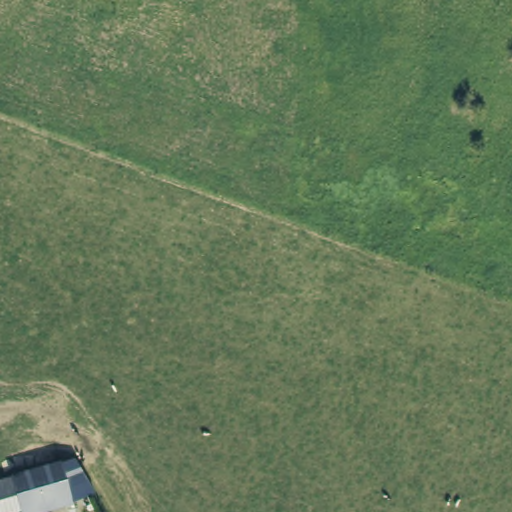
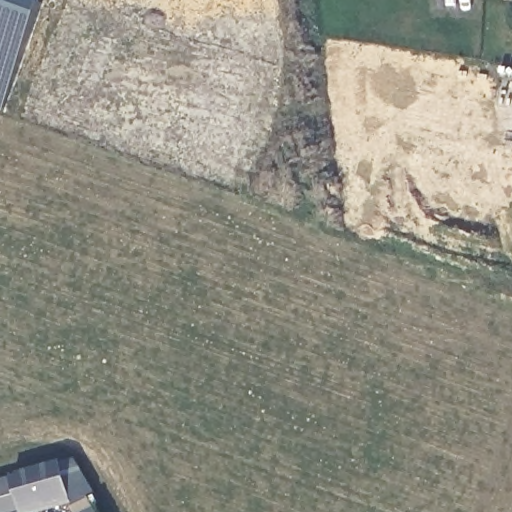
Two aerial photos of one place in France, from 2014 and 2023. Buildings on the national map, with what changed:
new [(2,113),(0,112),(0,0),(32,0),(42,3),(2,113)]
unchanged [(72,501),(74,504),(48,512),(0,512),(0,480),(61,461),(62,463),(76,459),(94,495),(72,501)]

